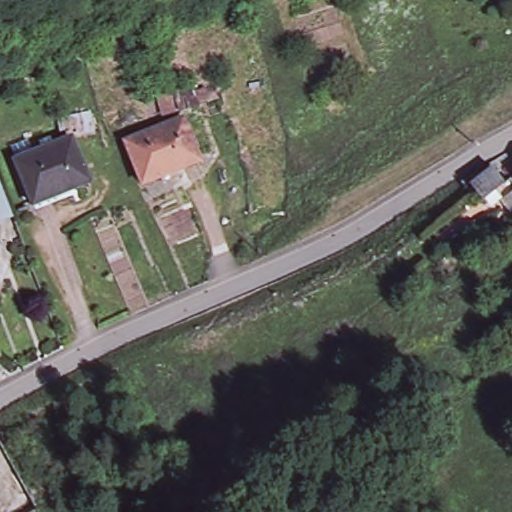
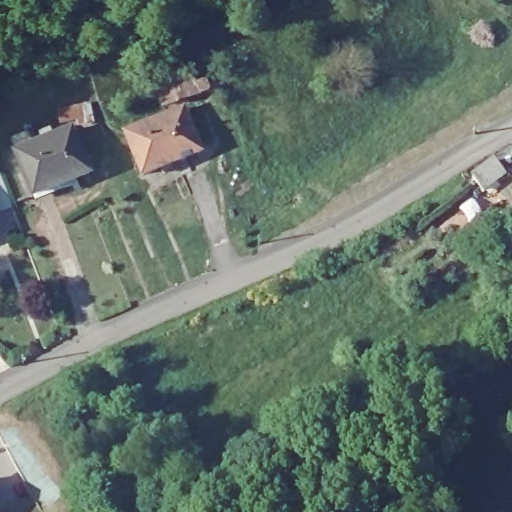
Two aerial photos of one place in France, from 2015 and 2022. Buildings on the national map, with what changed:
unchanged [(210,73),(213,85),(195,89),(192,77),(210,73)]
unchanged [(183,109),(200,152),(142,176),(124,133),(183,109)]
unchanged [(69,128),(88,171),(33,196),(14,152),(69,128)]
unchanged [(489,156),(501,171),(478,189),(466,173),(489,156)]

